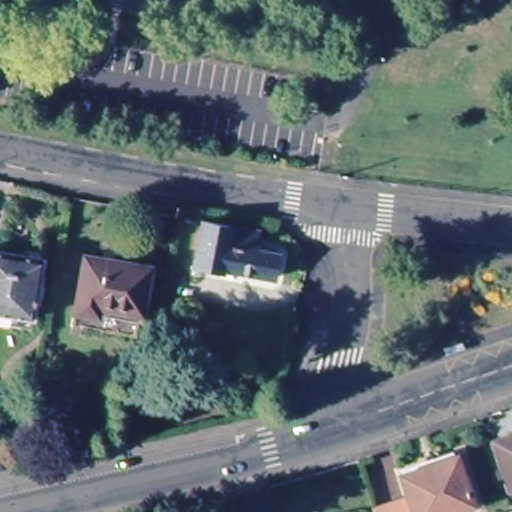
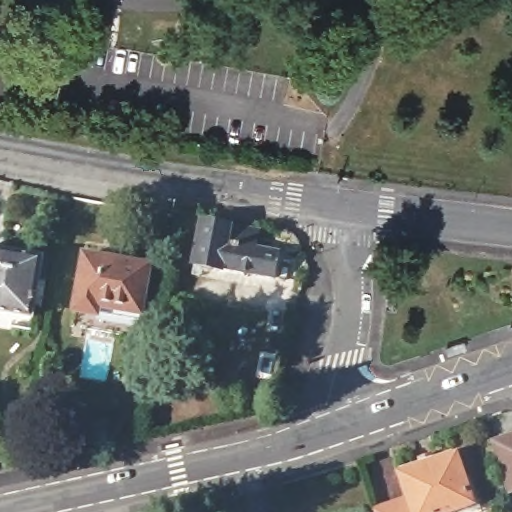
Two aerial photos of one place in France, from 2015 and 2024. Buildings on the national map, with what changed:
unchanged [(276,253),(272,278),(192,261),(201,217),(249,227),(262,230),(259,243),(258,249),(276,253)]
unchanged [(45,263),(36,325),(0,319),(0,256),(45,263)]
unchanged [(146,271),(138,319),(99,313),(97,320),(75,316),(86,259),(146,271)]
unchanged [(512,492),(498,449),(512,444),(512,492)]
unchanged [(396,473),(455,455),(472,504),(449,512),(374,512),(406,502),(396,473)]

